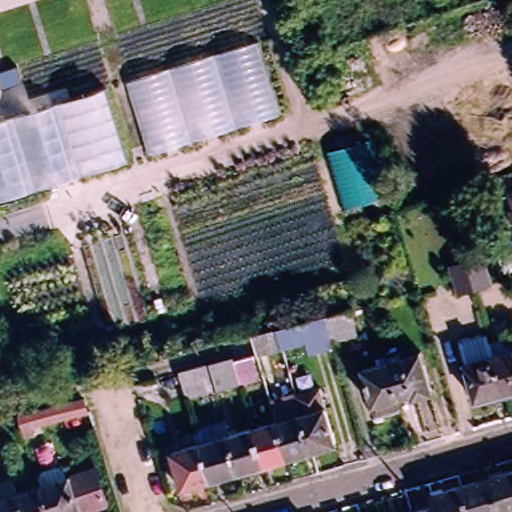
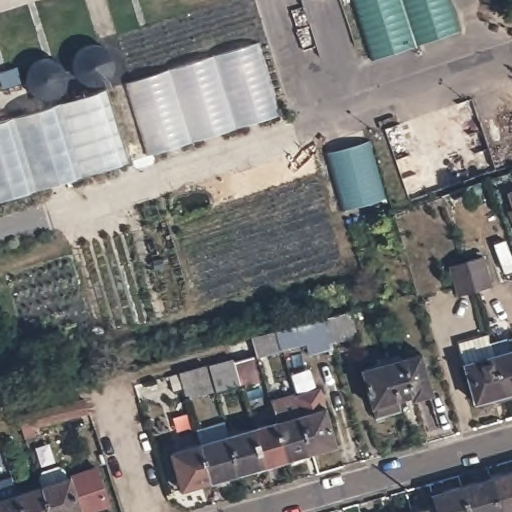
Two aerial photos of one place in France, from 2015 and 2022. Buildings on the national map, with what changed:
new [(349,0),(446,0),(457,33),(369,64),(348,0),(349,0)]
unchanged [(259,42),(282,115),(152,154),(129,82),(259,42)]
unchanged [(0,201),(0,122),(108,89),(130,162),(0,201)]
unchanged [(384,198),(341,204),(328,151),(367,141),(384,198)]
unchanged [(505,195),(512,193),(512,215),(505,195)]
unchanged [(447,269),(462,264),(479,261),(487,289),(470,293),(455,298),(447,269)]
unchanged [(312,324),(332,319),(355,312),(362,338),(339,345),(340,347),(316,354),(313,344),(288,351),(264,358),(262,352),(258,338),(282,332),(312,324)]
unchanged [(491,347),(509,342),(510,344),(512,344),(512,396),(505,398),(475,406),(465,367),(459,346),(488,338),(491,347)]
unchanged [(420,350),(432,391),(413,396),(412,393),(399,396),(388,359),(420,350)]
unchanged [(258,357),(265,382),(247,388),(246,385),(222,392),(214,365),(238,358),(240,362),(258,357)]
unchanged [(399,396),(402,409),(377,417),(362,367),(388,359),(399,396)]
unchanged [(212,365),(220,393),(193,400),(185,372),(212,365)]
unchanged [(307,449),(297,412),(291,392),(315,386),(321,406),(322,405),(332,442),(307,450),(307,449)]
unchanged [(220,418),(225,433),(248,426),(272,419),(267,399),(291,392),(297,412),(307,449),(307,450),(283,457),(260,463),(236,470),(207,478),(197,441),(192,426),(220,418)]
unchanged [(32,434),(29,426),(25,412),(69,400),(91,394),(95,408),(73,414),(40,423),(42,431),(32,434)]
unchanged [(178,487),(167,449),(197,441),(207,478),(178,487)]
unchanged [(47,482),(42,469),(45,462),(61,457),(68,462),(72,474),(102,465),(113,502),(83,512),(0,512),(0,497),(23,490),(47,482)]
unchanged [(502,511),(500,506),(490,473),(512,467),(512,508),(502,511)]
unchanged [(500,506),(502,511),(500,512),(470,512),(461,482),(490,473),(500,506)]
unchanged [(432,490),(461,482),(470,512),(438,512),(435,502),(432,490)]
unchanged [(435,502),(438,512),(413,512),(412,509),(435,502)]
unchanged [(413,512),(403,512),(412,509),(413,512)]

